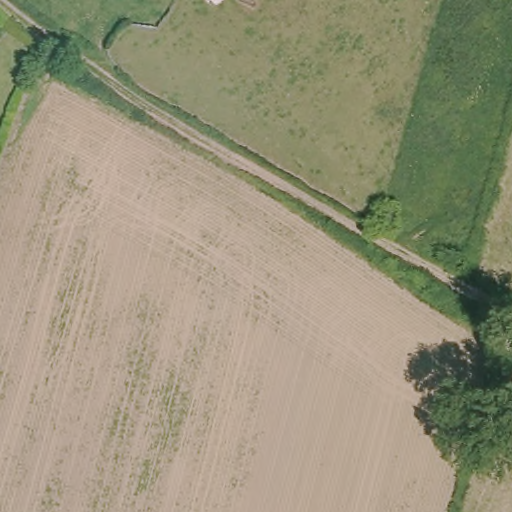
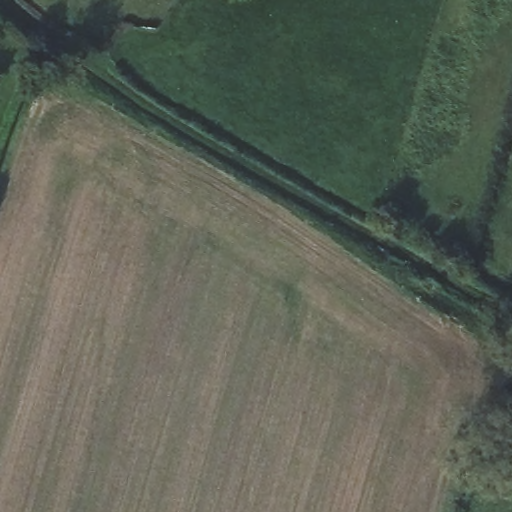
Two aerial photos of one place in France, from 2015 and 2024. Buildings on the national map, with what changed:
[]

